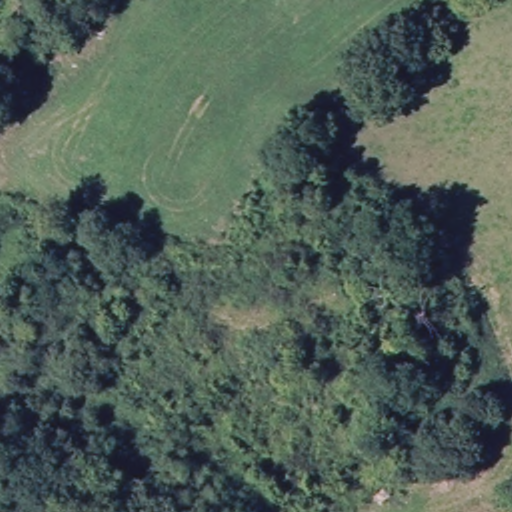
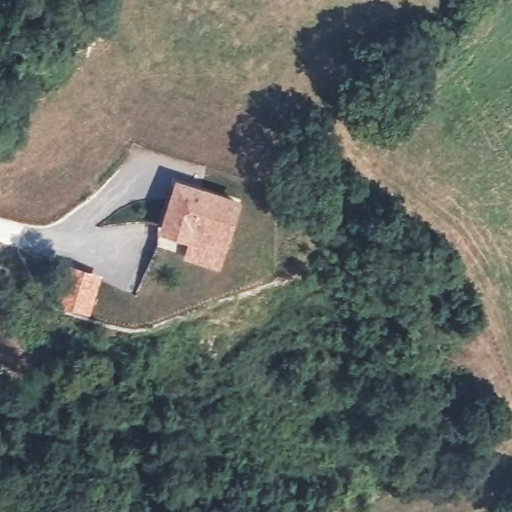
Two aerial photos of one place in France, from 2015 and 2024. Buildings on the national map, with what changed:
new [(176,183),(234,202),(220,245),(190,235),(189,238),(161,229),(176,183)]

